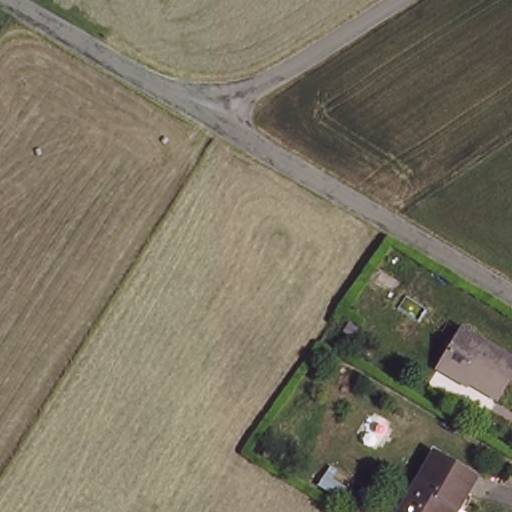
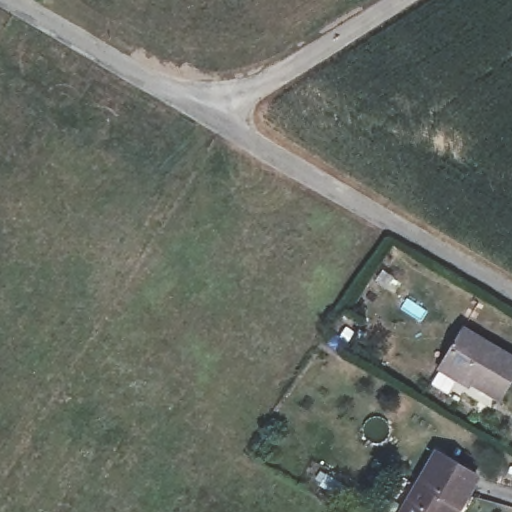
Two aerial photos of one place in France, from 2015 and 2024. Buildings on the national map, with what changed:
unchanged [(512,356),(512,370),(496,395),(441,360),(462,324),(512,356)]
unchanged [(437,450),(480,477),(460,507),(457,512),(400,512),(437,450)]

